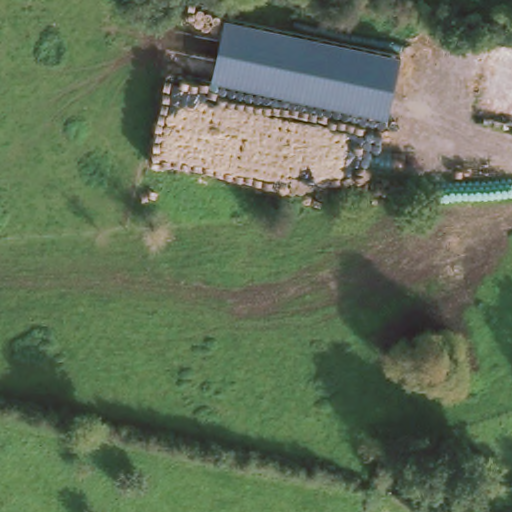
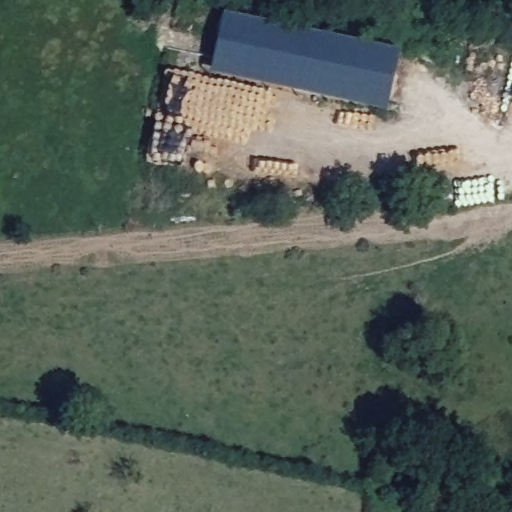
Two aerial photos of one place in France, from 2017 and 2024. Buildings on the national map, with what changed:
unchanged [(387,116),(211,79),(224,16),(400,55),(387,116)]

